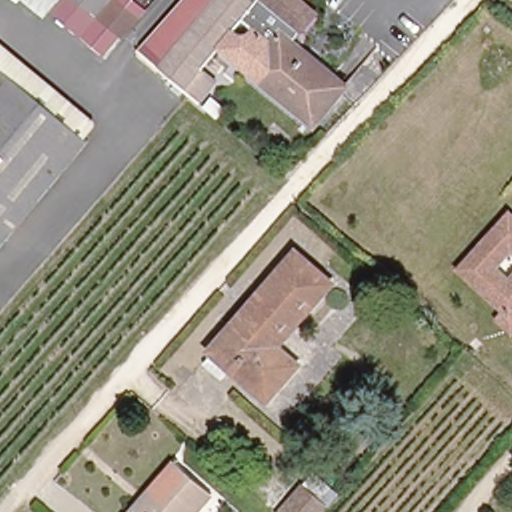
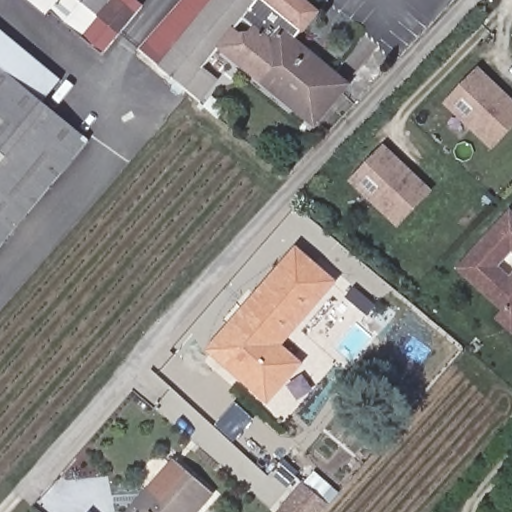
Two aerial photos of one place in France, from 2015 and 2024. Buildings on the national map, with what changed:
new [(129,29),(113,47),(105,56),(49,9),(45,14),(28,0),(58,0),(134,0),(145,9),(129,29)]
unchanged [(292,45),(342,92),(311,125),(249,68),(285,26),(260,3),(244,21),(235,31),(219,50),(204,67),(218,80),(198,101),(189,93),(136,48),(182,0),(298,0),(317,16),(292,45)]
unchanged [(235,31),(238,33),(246,33),(251,27),(244,21),(260,3),(285,26),(249,68),(219,50),(235,31)]
demolished [(85,24),(101,5),(129,29),(113,47),(85,24)]
unchanged [(43,100),(91,139),(0,251),(0,34),(59,81),(43,100)]
new [(512,98),(512,130),(493,151),(444,103),(479,67),(512,98)]
new [(398,228),(349,181),(384,144),(433,191),(398,228)]
unchanged [(499,317),(506,309),(459,269),(509,214),(512,217),(512,329),(499,317)]
unchanged [(269,349),(294,371),(266,402),(209,350),(291,255),(323,284),(269,349)]
unchanged [(177,462),(214,493),(198,512),(133,512),(177,462)]
unchanged [(319,512),(289,512),(283,506),(312,475),(334,495),(319,512)]

